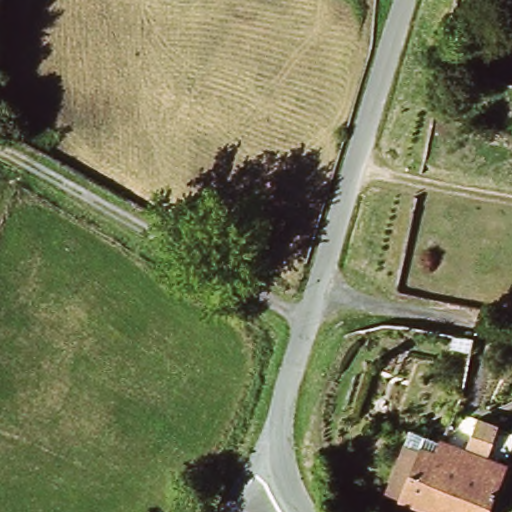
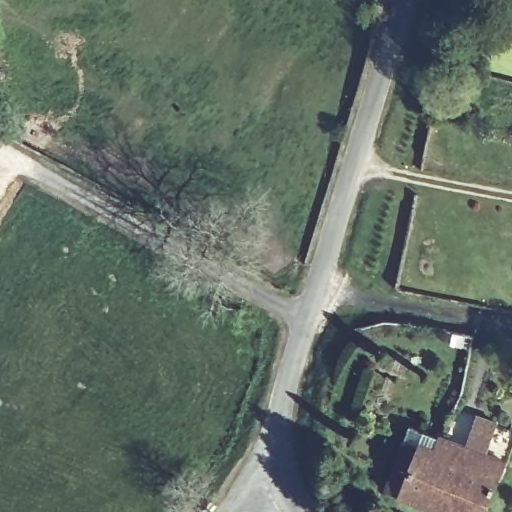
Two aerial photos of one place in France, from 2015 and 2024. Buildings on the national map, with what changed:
unchanged [(416,440),(437,445),(440,433),(479,445),(500,452),(483,512),(479,512),(400,492),(416,440)]

